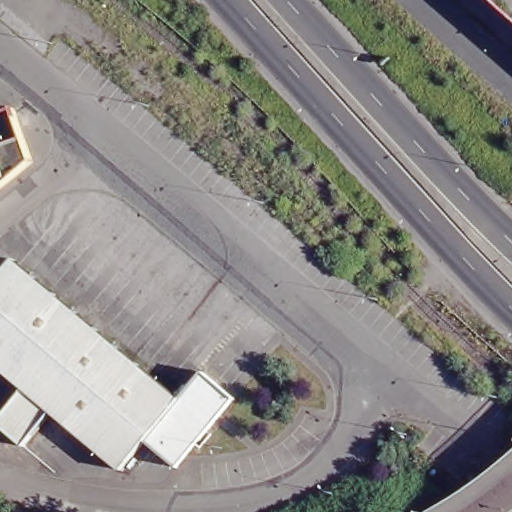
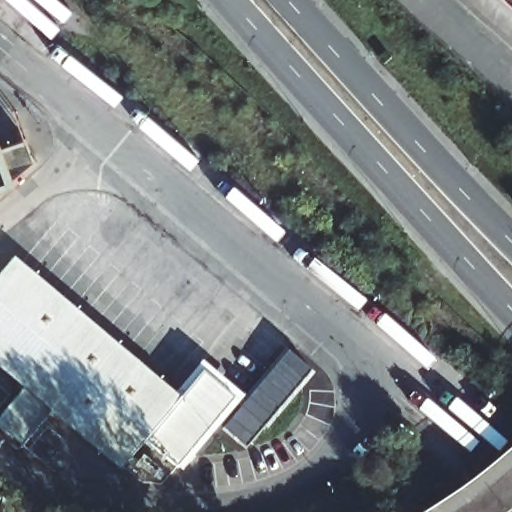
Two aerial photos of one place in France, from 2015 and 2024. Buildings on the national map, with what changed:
unchanged [(499,0),(512,0),(512,12),(506,7),(499,0)]
unchanged [(20,128),(23,135),(32,157),(25,160),(15,169),(0,181),(0,136),(20,128)]
unchanged [(185,385),(145,435),(122,463),(54,406),(24,441),(0,421),(0,412),(25,381),(0,361),(0,269),(20,246),(185,385)]
new [(312,372),(247,449),(225,430),(290,350),(312,372)]
unchanged [(185,385),(203,365),(234,390),(177,461),(145,435),(185,385)]

